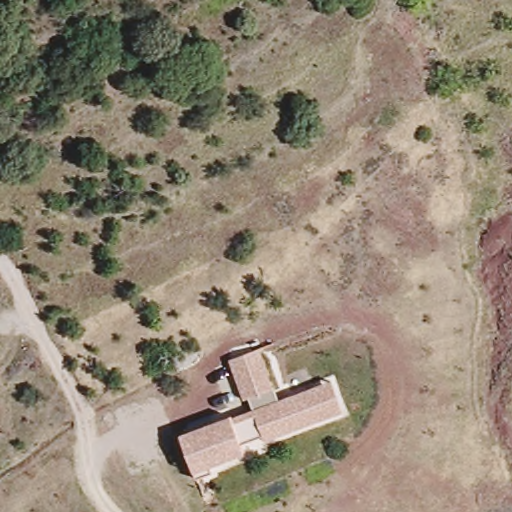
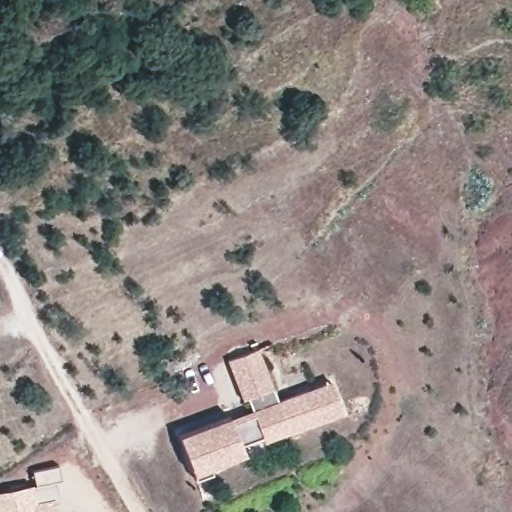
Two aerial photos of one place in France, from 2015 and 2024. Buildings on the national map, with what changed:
unchanged [(180,438),(225,418),(227,425),(249,416),(227,361),(257,350),(279,400),(332,381),(344,418),(223,460),(228,473),(193,484),(180,438)]
new [(32,471),(59,466),(62,480),(55,482),(58,496),(59,512),(0,512),(0,491),(35,484),(32,471)]

